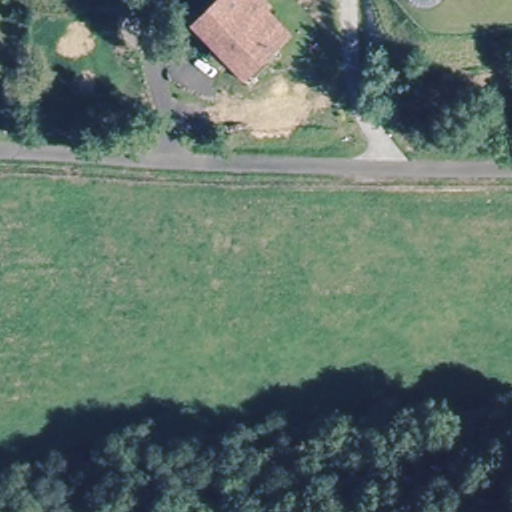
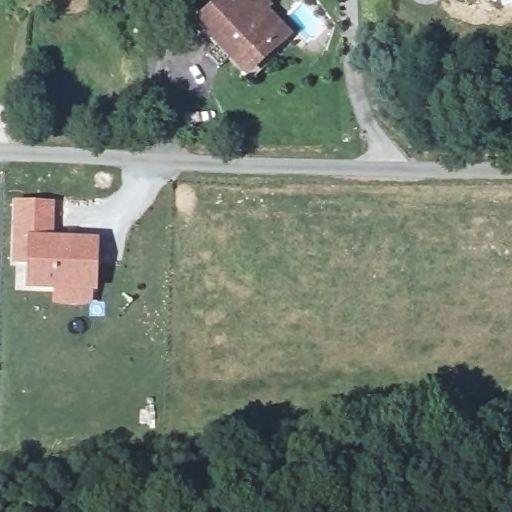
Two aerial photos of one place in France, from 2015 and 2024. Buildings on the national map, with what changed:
unchanged [(220,58),(211,67),(199,55),(207,46),(195,35),(200,29),(227,0),(255,0),(263,7),(259,11),(277,28),(285,35),(271,51),(249,75),(244,80),(220,58)]
new [(55,203),(53,234),(99,237),(97,293),(24,291),(26,264),(9,264),(13,200),(55,203)]

